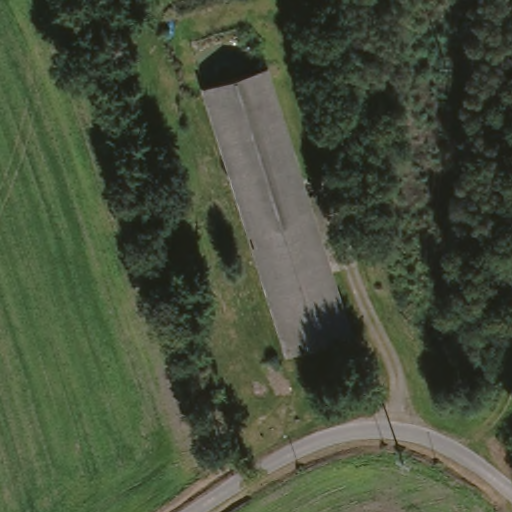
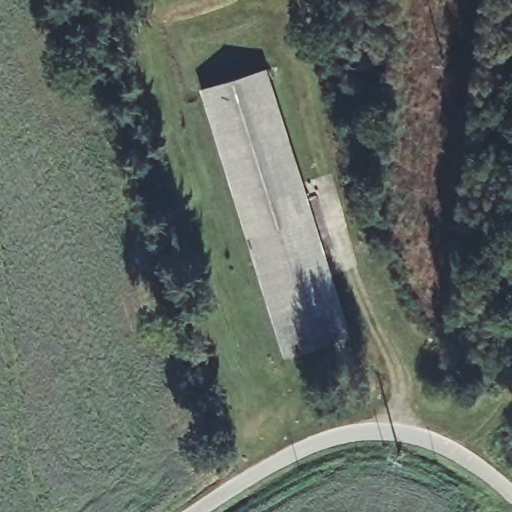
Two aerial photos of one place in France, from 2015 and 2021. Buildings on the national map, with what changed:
unchanged [(342,339),(282,355),(211,85),(270,69),(342,339)]

